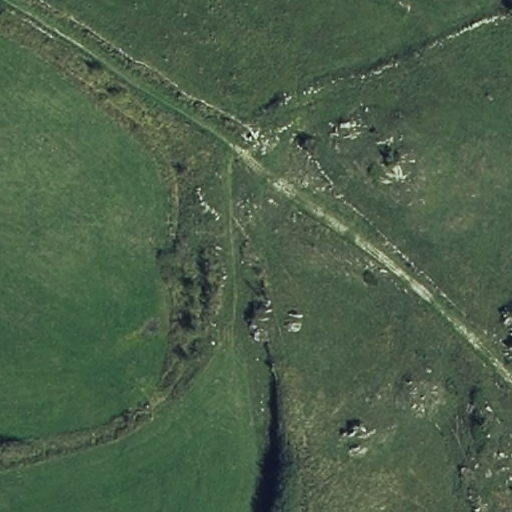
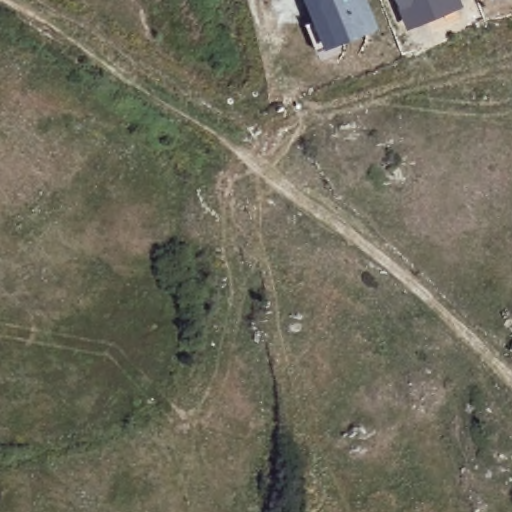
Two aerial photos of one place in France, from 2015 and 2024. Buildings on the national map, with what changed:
new [(381,28),(325,50),(306,0),(369,0),(381,28)]
new [(464,6),(406,29),(395,0),(461,0),(464,6)]

